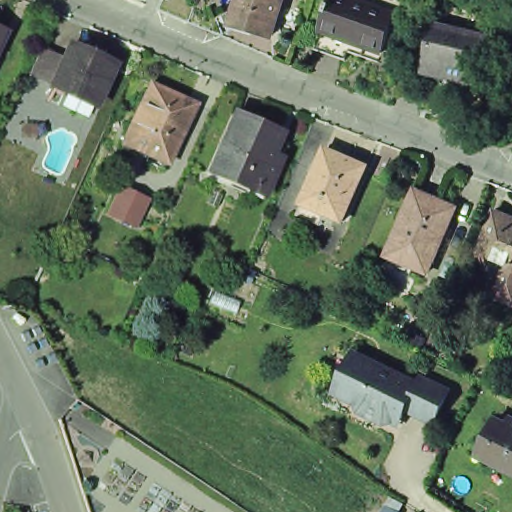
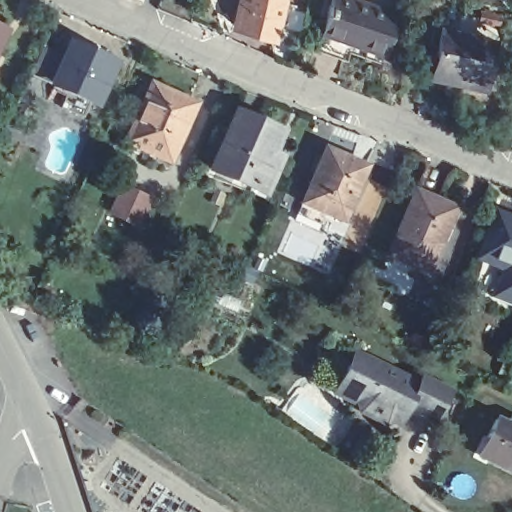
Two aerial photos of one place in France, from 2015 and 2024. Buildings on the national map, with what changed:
unchanged [(232,31),(242,0),(285,0),(270,43),(232,31)]
unchanged [(351,55),(320,45),(326,27),(332,9),(331,8),(333,0),(335,1),(336,0),(372,0),(401,10),(388,48),(385,57),(354,47),(351,55)]
unchanged [(449,25),(501,42),(487,84),(458,75),(459,72),(439,66),(430,94),(402,85),(410,56),(436,63),(449,25)]
unchanged [(0,56),(0,26),(11,32),(0,56)]
unchanged [(120,74),(102,112),(58,92),(34,82),(36,77),(48,54),(71,64),(75,54),(120,74)]
unchanged [(122,151),(125,146),(152,87),(190,104),(197,108),(187,129),(170,166),(135,150),(132,155),(122,151)]
unchanged [(23,133),(25,134),(20,145),(0,136),(11,112),(30,120),(23,133)]
unchanged [(208,172),(233,117),(276,135),(267,157),(276,161),(261,195),(246,189),(230,182),(208,172)]
unchanged [(302,217),(307,207),(331,151),(373,170),(349,225),(330,217),(325,227),(302,217)]
unchanged [(150,197),(135,231),(104,212),(117,179),(150,197)]
unchanged [(451,212),(423,275),(384,257),(410,201),(407,200),(411,189),(436,200),(434,205),(451,212)]
unchanged [(512,225),(512,308),(492,300),(506,267),(482,258),(497,220),(512,225)]
unchanged [(425,427),(398,413),(395,422),(377,428),(352,416),(350,408),(332,398),(342,381),(339,374),(348,357),(377,371),(378,369),(412,387),(415,382),(436,393),(442,396),(437,404),(425,427)]
unchanged [(488,443),(497,425),(508,431),(511,422),(512,423),(512,478),(487,465),(480,461),(488,443)]

